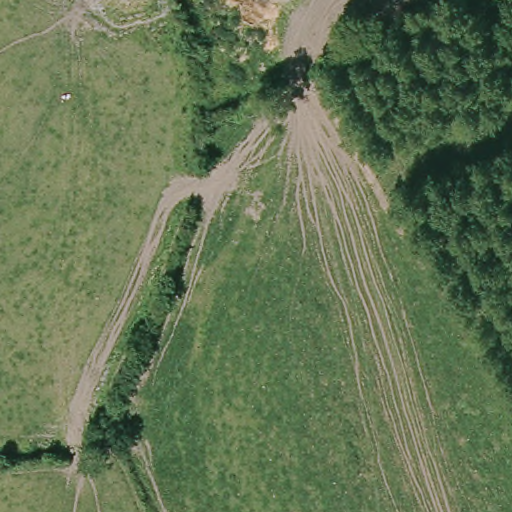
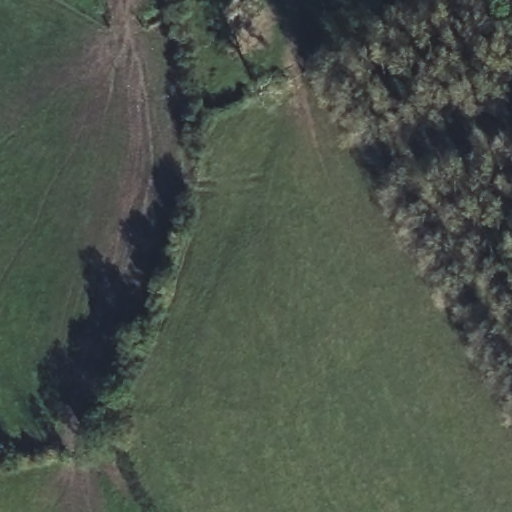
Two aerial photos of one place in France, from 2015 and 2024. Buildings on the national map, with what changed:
[]

